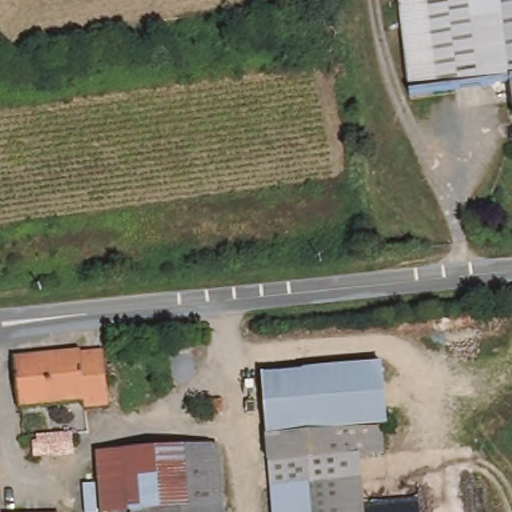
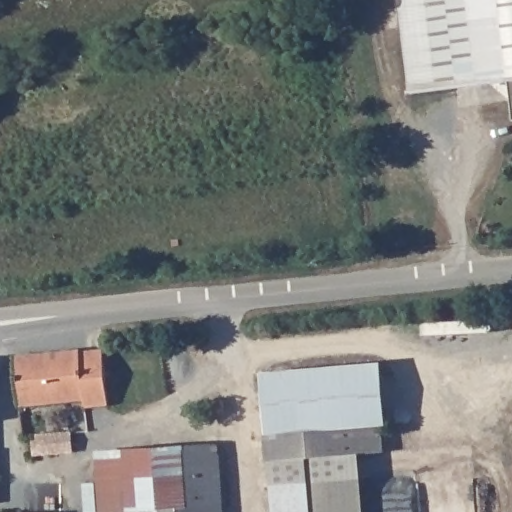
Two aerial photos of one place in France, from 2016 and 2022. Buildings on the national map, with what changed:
unchanged [(400,0),(512,0),(512,81),(411,93),(400,0)]
unchanged [(40,384),(74,379),(71,353),(100,349),(107,402),(84,405),(83,397),(42,403),(40,384)]
unchanged [(71,353),(74,379),(40,384),(42,403),(22,405),(17,360),(71,353)]
unchanged [(263,372),(383,362),(388,451),(363,454),(368,512),(274,512),(263,372)]
unchanged [(45,425),(76,422),(76,430),(77,446),(39,450),(37,434),(46,433),(45,425)]
unchanged [(214,443),(219,512),(128,512),(127,508),(101,509),(96,451),(214,443)]

